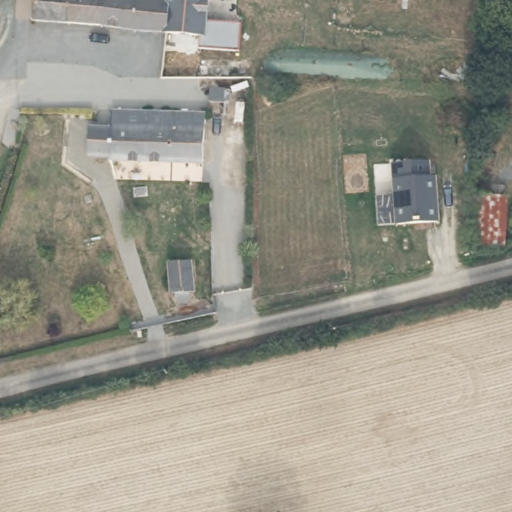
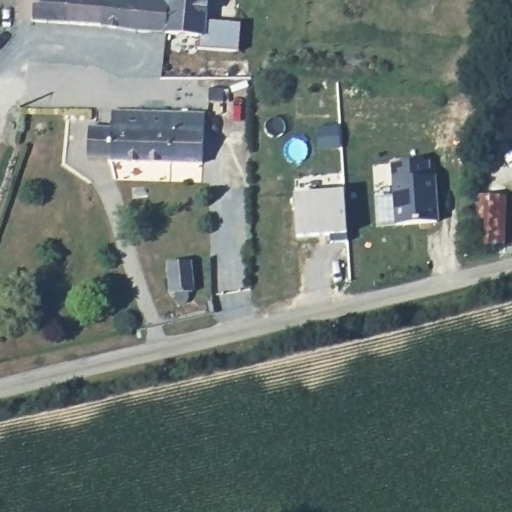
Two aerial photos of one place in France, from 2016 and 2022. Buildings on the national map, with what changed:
unchanged [(237,0),(232,38),(32,18),(34,0),(237,0)]
unchanged [(207,83),(221,84),(220,104),(205,104),(207,83)]
unchanged [(225,89),(244,89),(242,114),(222,114),(225,89)]
unchanged [(204,111),(202,166),(106,162),(106,161),(84,161),(85,121),(107,121),(107,106),(204,111)]
unchanged [(390,165),(428,161),(429,178),(435,178),(437,222),(394,225),(390,165)]
unchanged [(475,242),(477,192),(509,195),(505,243),(475,242)]
new [(340,193),(342,243),(325,243),(325,236),(292,237),(290,196),(340,193)]
unchanged [(191,262),(191,290),(184,302),(179,302),(174,300),(166,289),(166,262),(191,262)]

